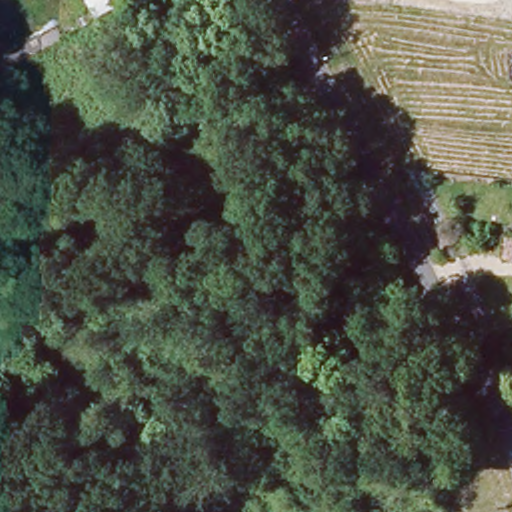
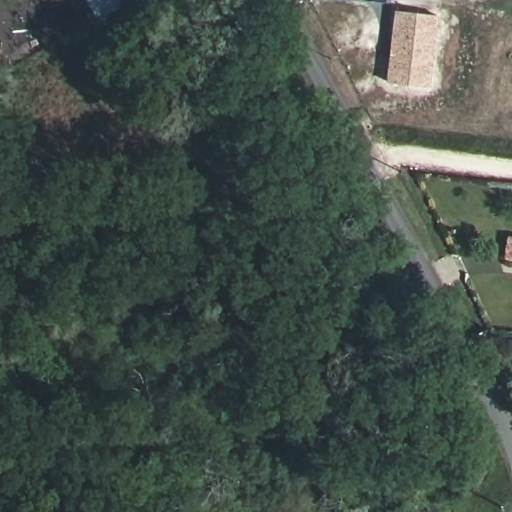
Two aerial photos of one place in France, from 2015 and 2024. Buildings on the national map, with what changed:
new [(431,88),(388,83),(396,12),(440,17),(431,88)]
unchanged [(512,261),(506,261),(508,236),(512,236),(512,261)]

